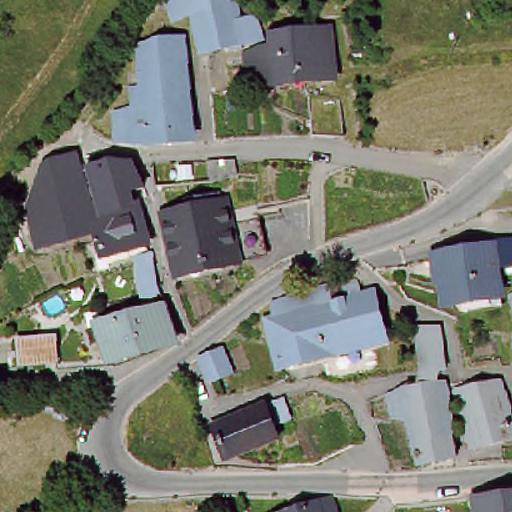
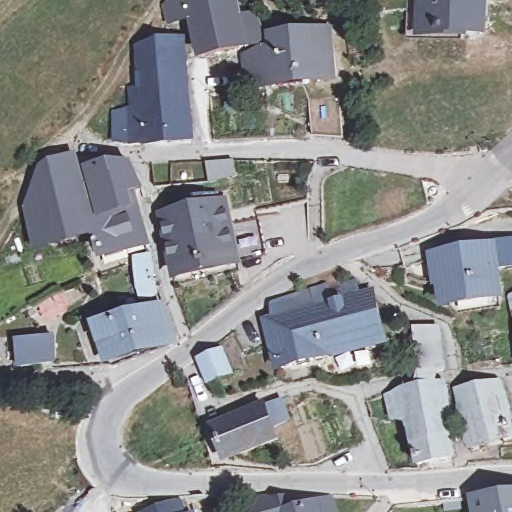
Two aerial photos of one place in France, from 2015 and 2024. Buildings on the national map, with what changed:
unchanged [(235,0),(237,25),(253,20),(263,42),(246,49),(245,42),(197,50),(188,20),(171,24),(165,9),(177,0),(235,0)]
new [(431,5),(448,4),(448,0),(490,0),(492,31),(472,32),(473,37),(433,40),(433,36),(419,37),(417,5),(431,5)]
unchanged [(245,60),(257,58),(257,56),(272,55),(270,41),(325,34),(332,80),(262,88),(261,85),(248,86),(245,60)]
unchanged [(143,86),(135,47),(162,42),(182,39),(188,138),(115,145),(109,112),(134,109),(130,89),(143,86)]
unchanged [(20,218),(32,215),(28,194),(52,188),(47,167),(65,164),(70,184),(82,222),(82,226),(85,237),(28,252),(20,218)]
unchanged [(127,177),(135,189),(118,192),(112,171),(127,177)]
unchanged [(218,189),(233,253),(177,266),(163,211),(188,204),(187,197),(218,189)]
unchanged [(82,226),(90,223),(85,209),(125,200),(141,245),(100,257),(92,235),(85,237),(82,226)]
unchanged [(453,247),(463,247),(485,245),(490,295),(442,300),(439,279),(430,280),(427,258),(437,257),(453,256),(453,247)]
unchanged [(140,288),(137,288),(132,261),(151,257),(155,286),(157,293),(140,296),(140,288)]
unchanged [(295,306),(309,301),(310,303),(357,292),(360,307),(375,305),(385,347),(328,360),(330,364),(280,377),(265,332),(274,330),(270,320),(267,314),(281,305),(282,310),(285,308),(295,306)]
unchanged [(150,310),(160,343),(132,352),(120,318),(150,310)]
unchanged [(132,352),(102,362),(91,328),(120,318),(132,352)]
unchanged [(416,337),(438,335),(442,373),(422,376),(416,337)]
unchanged [(57,342),(59,366),(24,369),(21,346),(57,342)]
unchanged [(228,382),(205,390),(196,368),(218,353),(228,382)]
unchanged [(512,434),(512,445),(502,447),(500,441),(469,445),(455,395),(495,383),(509,434),(512,434)]
unchanged [(450,436),(445,437),(447,460),(415,465),(405,409),(388,411),(386,398),(404,391),(442,388),(450,436)]
unchanged [(268,443),(217,462),(205,430),(257,408),(268,443)]
unchanged [(465,503),(512,496),(512,512),(467,512),(465,503)]
new [(197,512),(141,512),(184,497),(189,511),(195,508),(197,512)]
unchanged [(323,509),(324,512),(312,512),(323,509)]

